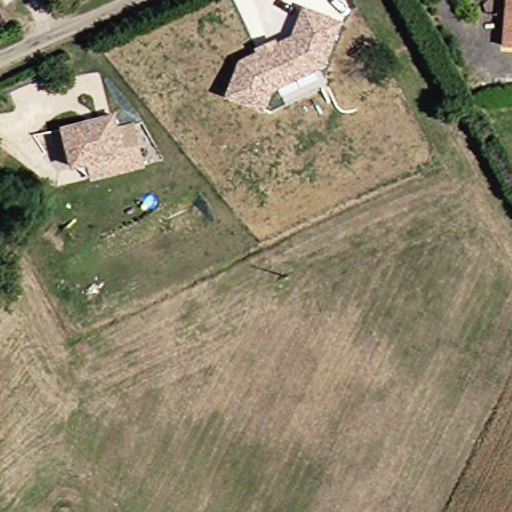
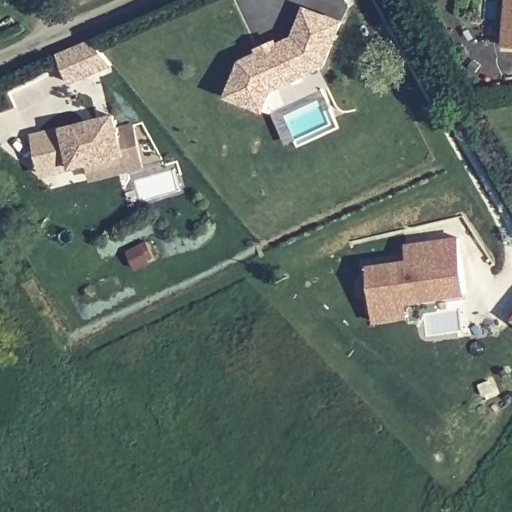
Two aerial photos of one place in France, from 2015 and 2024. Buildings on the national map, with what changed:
unchanged [(500,46),(504,0),(512,0),(512,46),(500,46)]
unchanged [(303,10),(339,22),(325,66),(273,92),(265,112),(229,99),(240,64),(259,55),(258,51),(274,44),(276,47),(292,40),(303,10)]
new [(88,40),(110,67),(68,85),(55,55),(88,40)]
unchanged [(70,165),(60,125),(115,114),(116,127),(122,151),(85,160),(70,165)]
unchanged [(122,151),(116,127),(130,124),(139,164),(91,176),(85,160),(122,151)]
new [(374,321),(372,306),(366,267),(430,260),(406,262),(404,246),(427,244),(457,240),(465,294),(405,301),(407,316),(374,321)]

